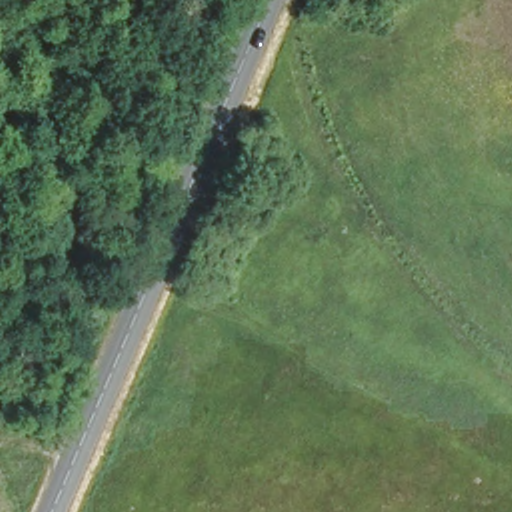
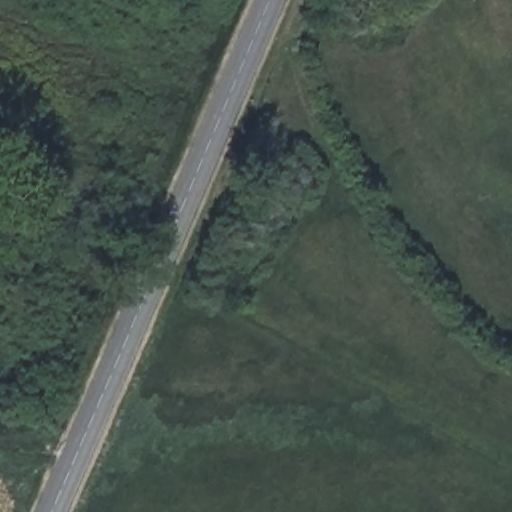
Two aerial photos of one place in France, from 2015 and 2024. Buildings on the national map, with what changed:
[]

